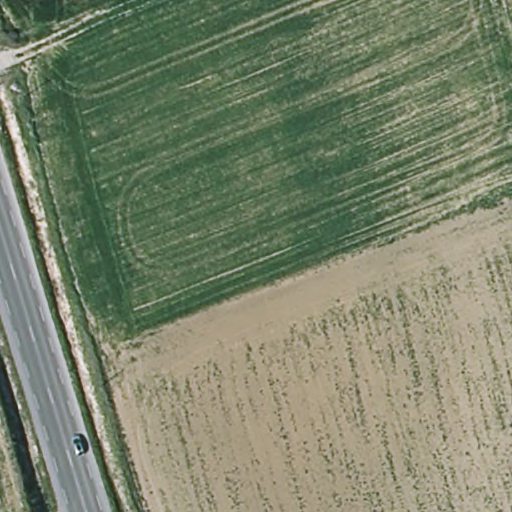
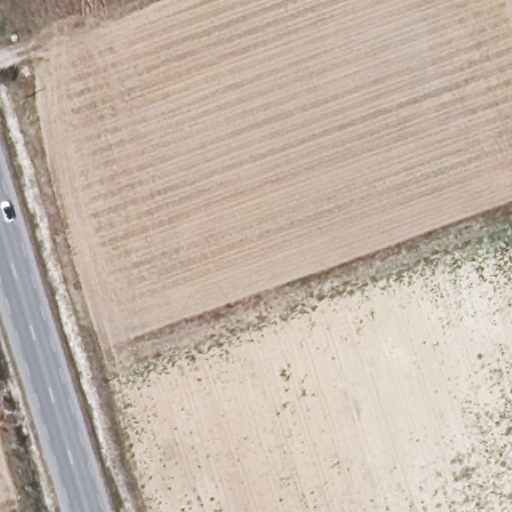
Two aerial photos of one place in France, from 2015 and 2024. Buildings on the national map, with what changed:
[]

